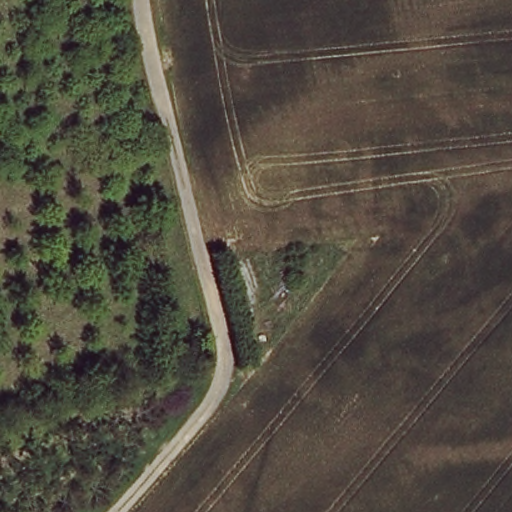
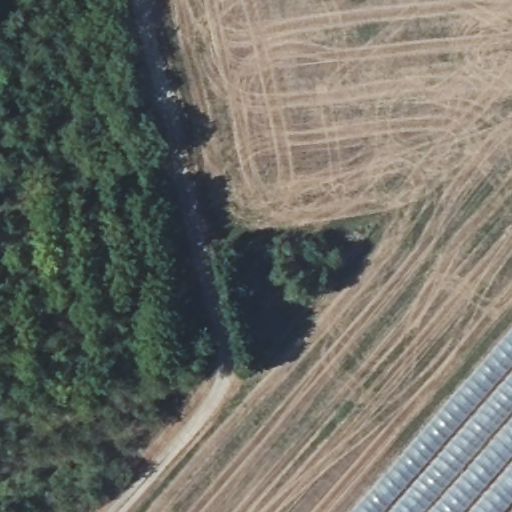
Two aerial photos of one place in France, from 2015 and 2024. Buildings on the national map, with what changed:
new [(504,512),(350,512),(512,328),(512,503),(504,512)]

